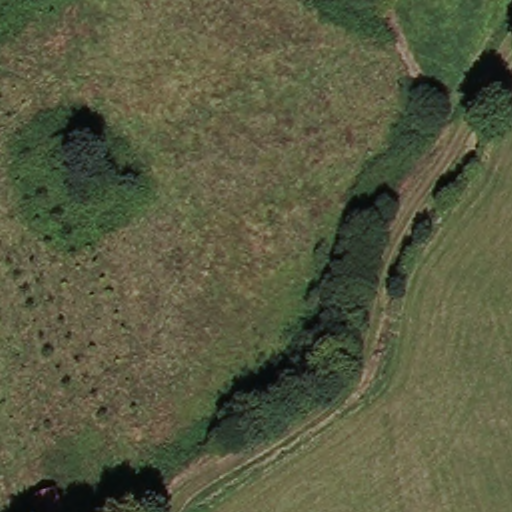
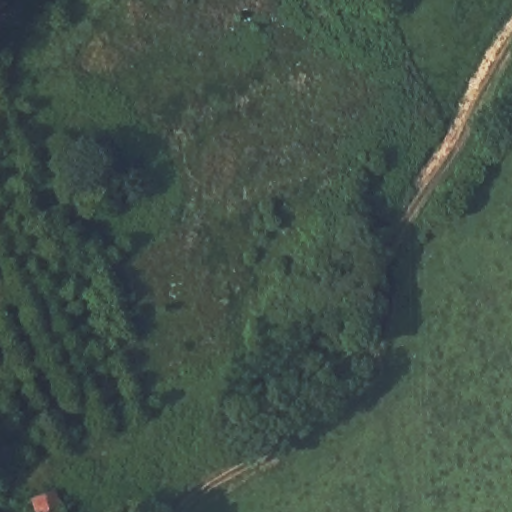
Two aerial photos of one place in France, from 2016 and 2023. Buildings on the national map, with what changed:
unchanged [(60,495),(65,512),(40,512),(37,503),(60,495)]

